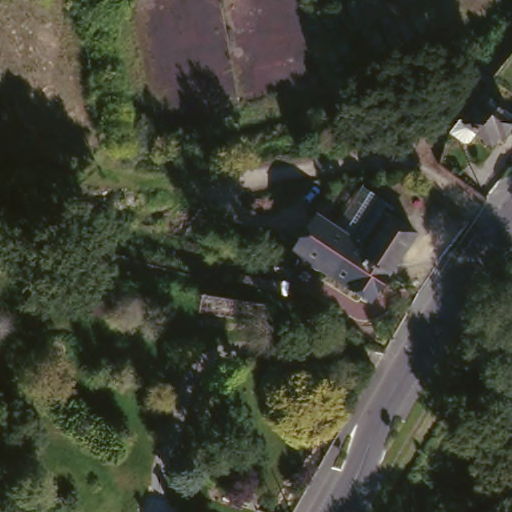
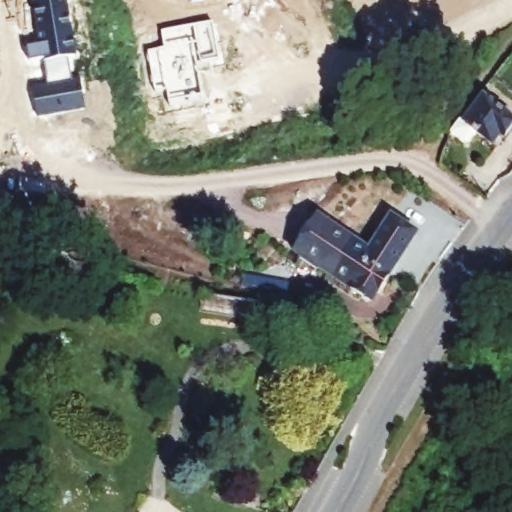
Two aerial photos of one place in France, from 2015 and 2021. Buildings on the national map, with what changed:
new [(34,0),(66,0),(75,54),(69,55),(73,80),(81,79),(86,109),(39,118),(34,86),(49,84),(44,58),(30,59),(27,44),(41,42),(34,0)]
new [(189,0),(195,0),(189,1),(189,0)]
new [(163,46),(160,29),(211,19),(218,58),(195,61),(201,93),(187,95),(189,99),(168,103),(165,86),(154,89),(146,49),(163,46)]
unchanged [(496,130),(488,140),(473,129),(466,138),(461,139),(448,129),(457,116),(461,119),(480,94),(512,118),(512,119),(501,134),(496,130)]
unchanged [(362,193),(397,215),(390,224),(370,254),(353,243),(336,231),(362,193)]
unchanged [(390,224),(415,242),(370,307),(329,279),(295,255),(320,219),(336,231),(353,243),(370,254),(390,224)]
unchanged [(264,304),(262,323),(199,314),(200,297),(264,304)]

